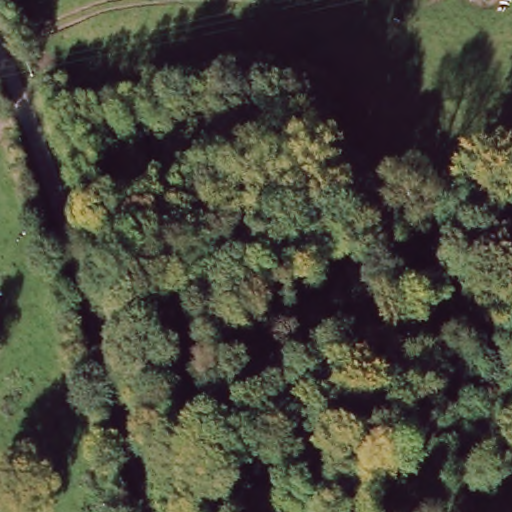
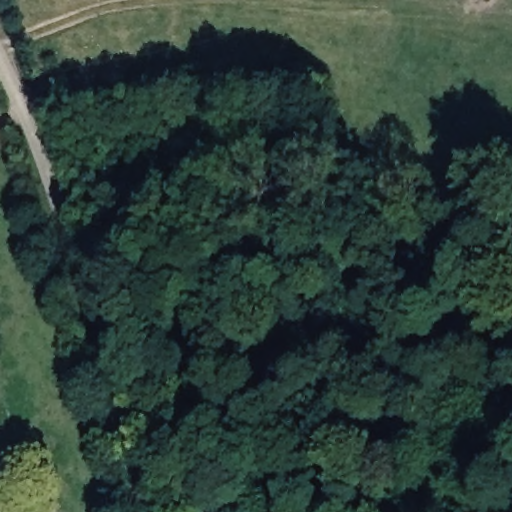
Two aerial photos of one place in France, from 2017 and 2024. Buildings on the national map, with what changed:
unchanged [(52,95),(87,91),(92,121),(57,126),(52,95)]

